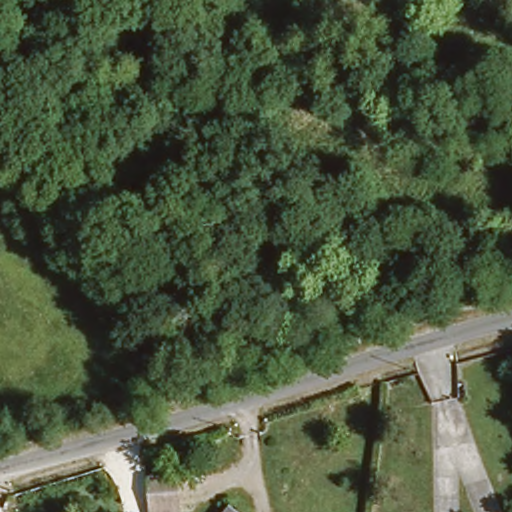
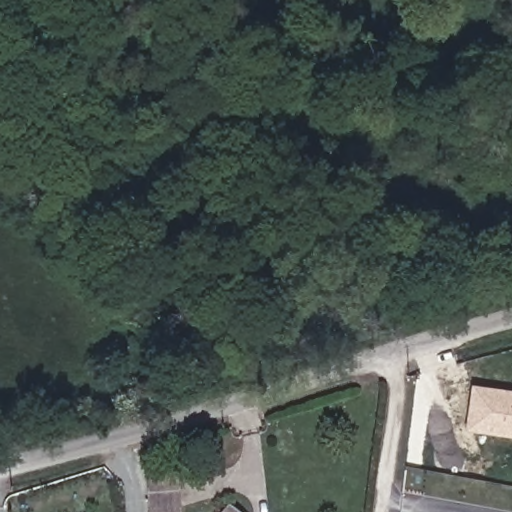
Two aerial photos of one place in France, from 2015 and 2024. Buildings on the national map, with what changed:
new [(465,431),(472,383),(512,389),(512,437),(465,431)]
unchanged [(149,479),(177,477),(179,512),(152,512),(149,479)]
unchanged [(235,504),(244,512),(227,512),(235,504)]

